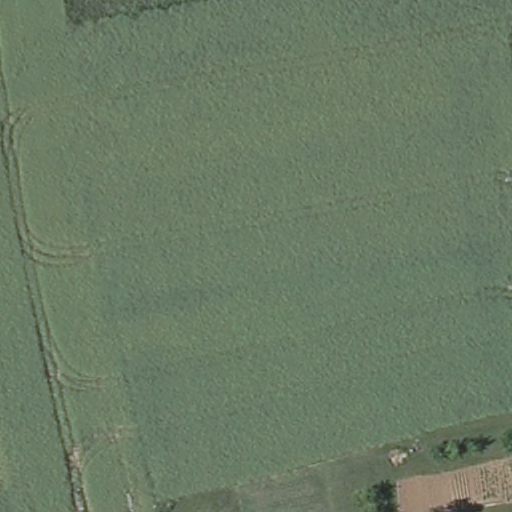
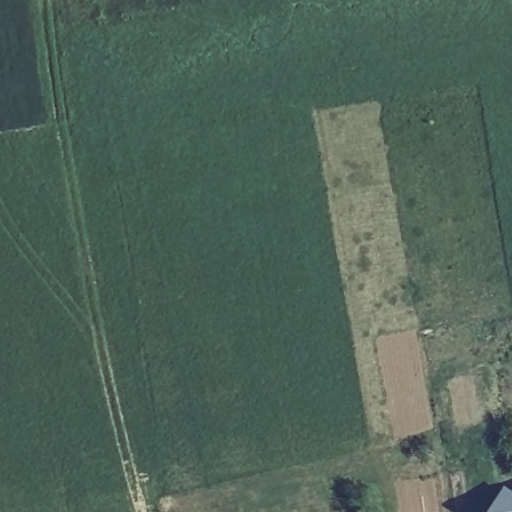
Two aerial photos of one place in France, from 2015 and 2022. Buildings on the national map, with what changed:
new [(485,512),(501,489),(512,496),(512,512),(485,512)]

